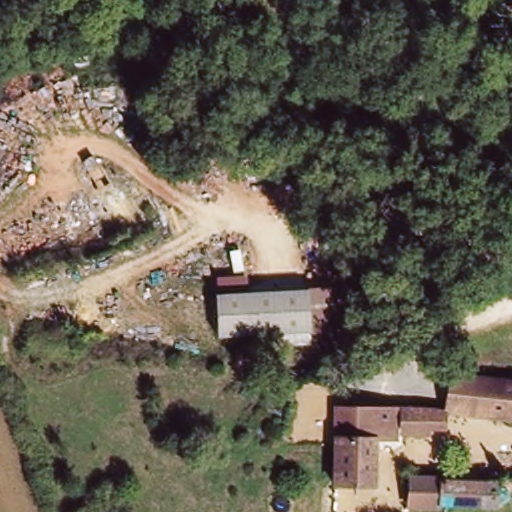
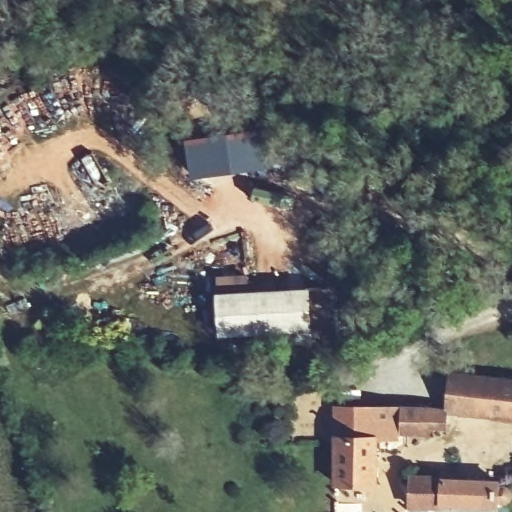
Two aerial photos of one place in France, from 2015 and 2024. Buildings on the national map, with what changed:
new [(187,141),(271,126),(275,166),(193,178),(187,141)]
unchanged [(314,296),(312,338),(229,335),(219,335),(223,293),(228,293),(314,296)]
unchanged [(331,406),(444,408),(449,368),(512,377),(512,424),(448,419),(449,433),(400,434),(401,446),(376,446),(376,438),(331,436),(331,406)]
unchanged [(376,446),(376,488),(331,488),(331,436),(376,438),(376,446)]
unchanged [(404,502),(405,471),(442,474),(442,479),(496,485),(501,488),(504,494),(504,500),(500,505),(494,508),(404,502)]

